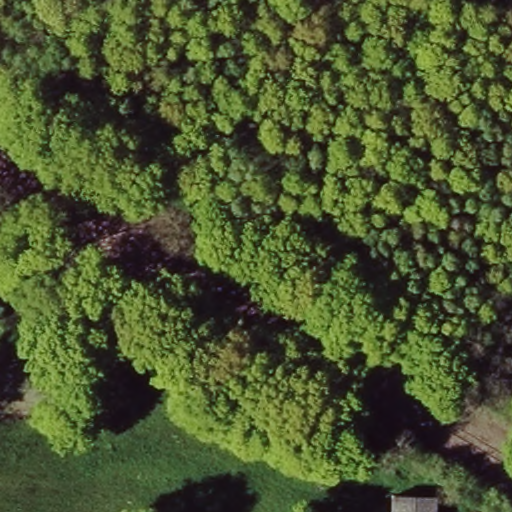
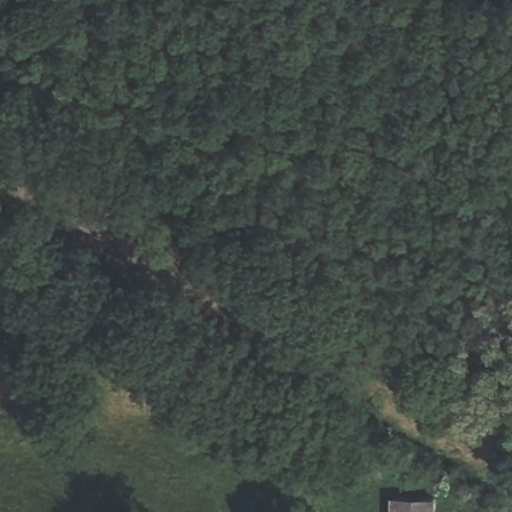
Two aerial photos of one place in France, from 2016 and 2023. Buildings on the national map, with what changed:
unchanged [(30,365),(0,365),(0,338),(29,337),(30,365)]
unchanged [(440,512),(403,512),(403,497),(440,498),(440,512)]

